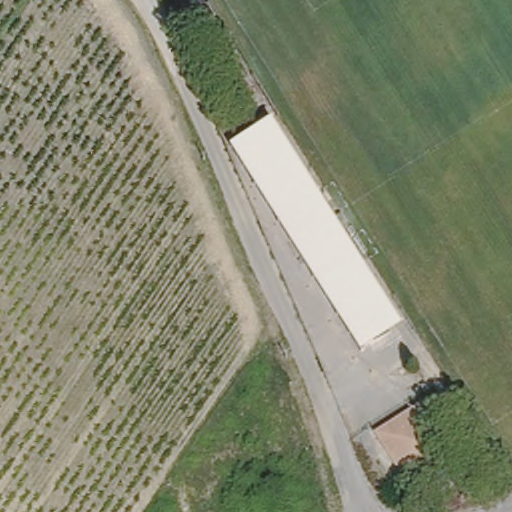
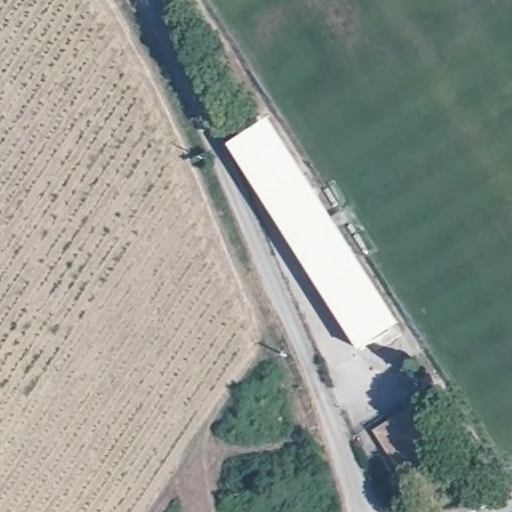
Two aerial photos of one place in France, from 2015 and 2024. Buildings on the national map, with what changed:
unchanged [(378,350),(343,316),(259,185),(240,130),(264,114),(405,334),(378,350)]
unchanged [(444,451),(398,481),(369,435),(415,406),(444,451)]

